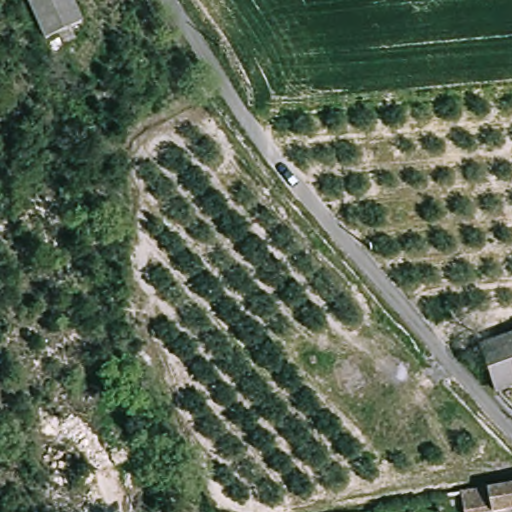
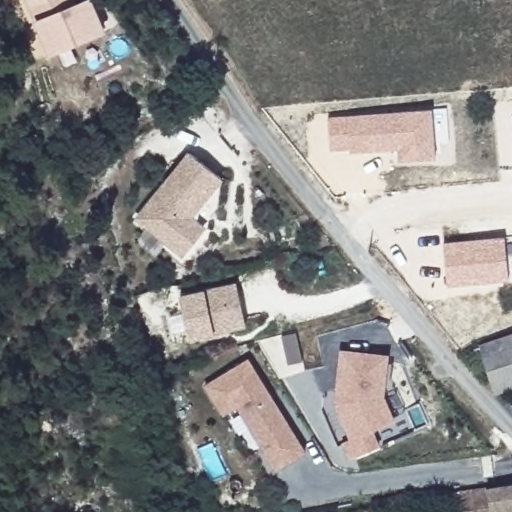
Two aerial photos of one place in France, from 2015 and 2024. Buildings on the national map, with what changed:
unchanged [(42,33),(30,0),(72,0),(78,19),(42,33)]
new [(93,0),(107,30),(51,55),(42,33),(78,19),(73,4),(82,0),(93,0)]
new [(432,109),(435,158),(397,160),(397,149),(350,152),(350,149),(330,150),(329,117),(348,115),(432,109)]
new [(191,160),(221,186),(188,224),(202,236),(180,262),(137,224),(191,160)]
new [(508,280),(447,285),(443,242),(505,236),(508,280)]
new [(179,295),(235,283),(245,326),(189,339),(179,295)]
unchanged [(490,387),(474,342),(512,332),(512,380),(490,387)]
new [(343,350),(388,357),(382,397),(392,420),(370,429),(377,445),(350,458),(343,441),(352,437),(336,402),(343,350)]
new [(275,469),(238,407),(222,416),(203,386),(247,358),(305,451),(275,469)]
unchanged [(512,480),(512,504),(497,506),(467,511),(463,487),(493,482),(512,480)]

